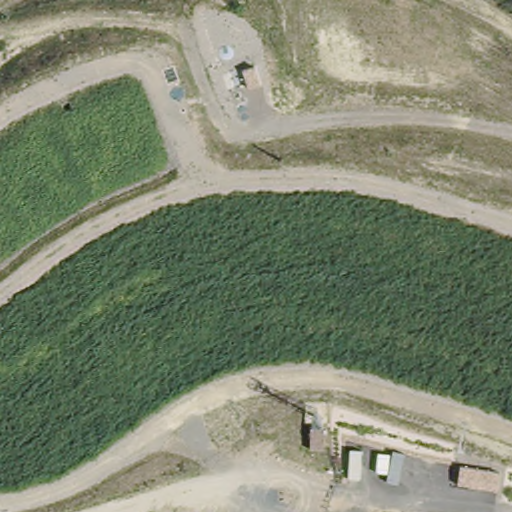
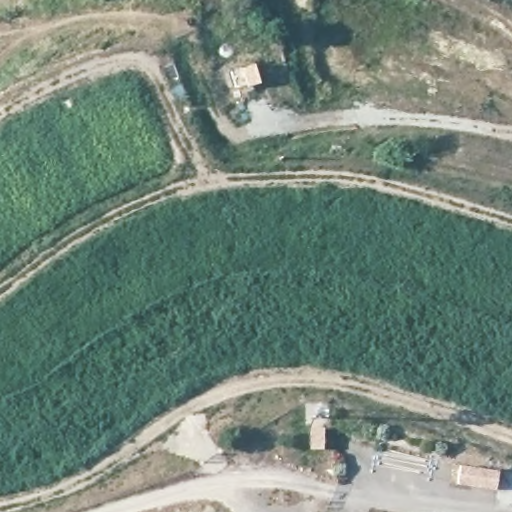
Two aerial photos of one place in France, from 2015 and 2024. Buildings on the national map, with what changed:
unchanged [(459,465),(501,471),(498,488),(457,484),(459,465)]

